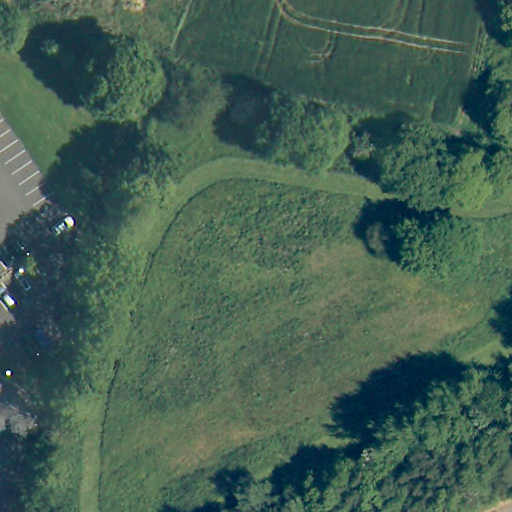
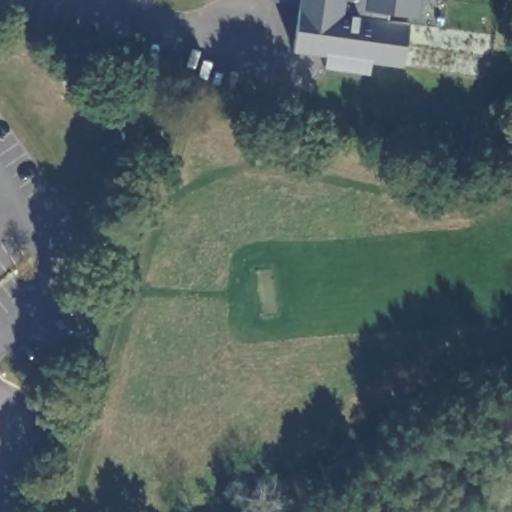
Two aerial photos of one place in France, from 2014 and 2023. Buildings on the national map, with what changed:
new [(389,12),(387,20),(410,24),(403,67),(371,62),(370,73),(325,68),(327,54),(294,50),(301,0),(421,0),(418,16),(389,12)]

